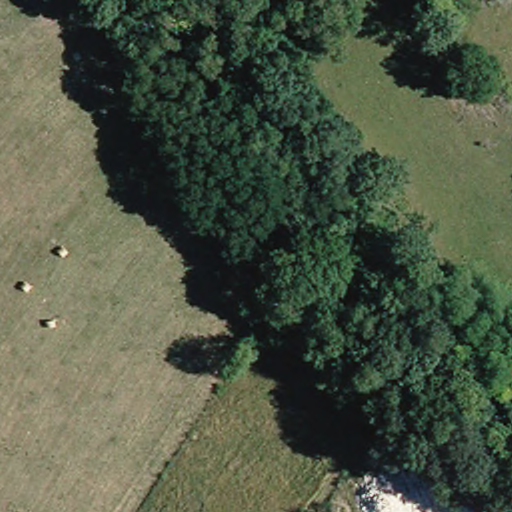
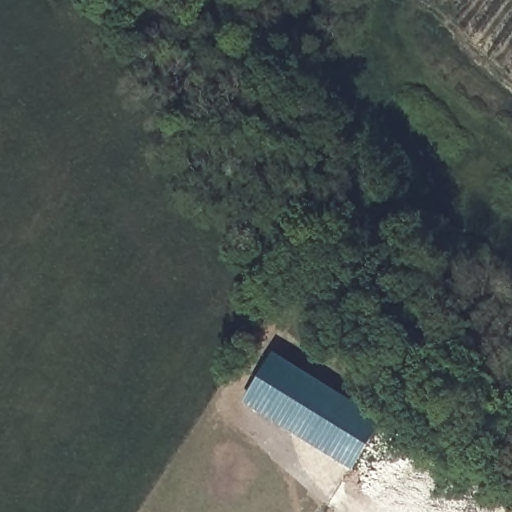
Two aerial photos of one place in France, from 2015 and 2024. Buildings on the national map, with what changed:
new [(354,472),(242,403),(273,353),(384,423),(354,472)]

